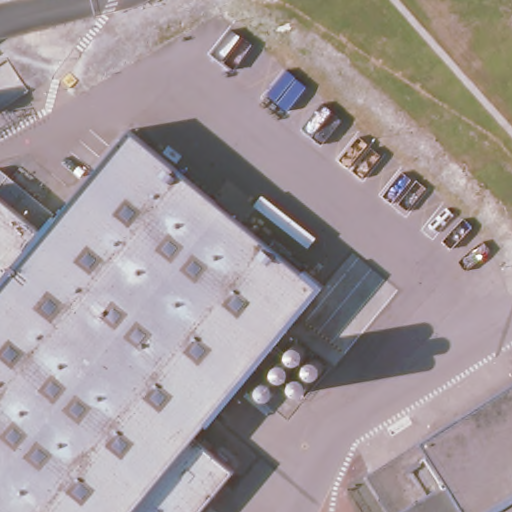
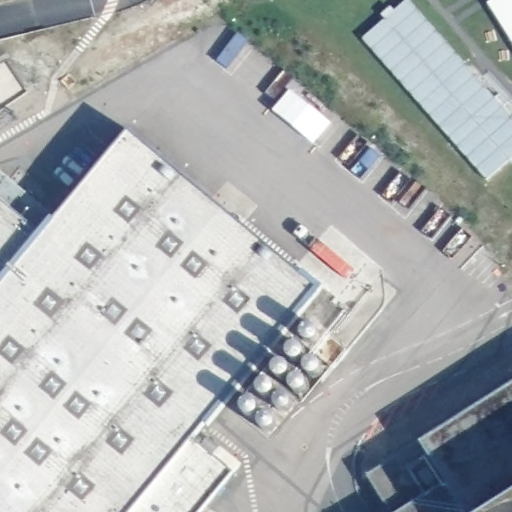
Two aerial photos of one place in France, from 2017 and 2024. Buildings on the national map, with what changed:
new [(512,116),(512,163),(510,161),(488,181),(363,39),(386,18),(382,14),(391,6),(395,11),(407,0),(409,0),(512,116)]
new [(487,3),(491,0),(512,0),(512,41),(487,3)]
new [(273,110),(290,90),(330,124),(313,144),(293,127),(273,110)]
unchanged [(55,216),(58,219),(133,127),(306,271),(308,268),(328,285),(215,422),(211,419),(134,512),(0,512),(0,191),(45,229),(55,216)]
unchanged [(425,441),(512,385),(512,512),(373,512),(355,484),(425,441)]
new [(200,512),(134,512),(194,440),(233,472),(200,512)]

